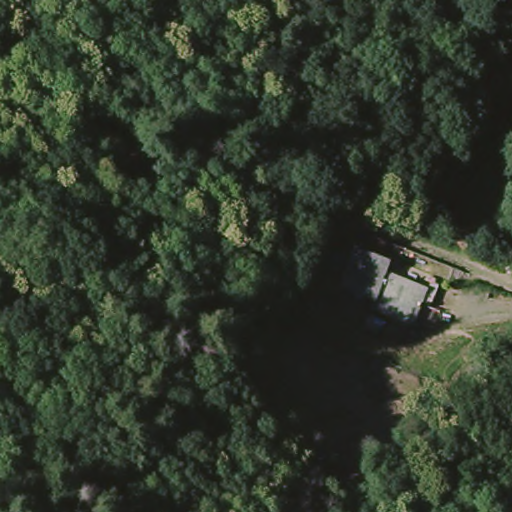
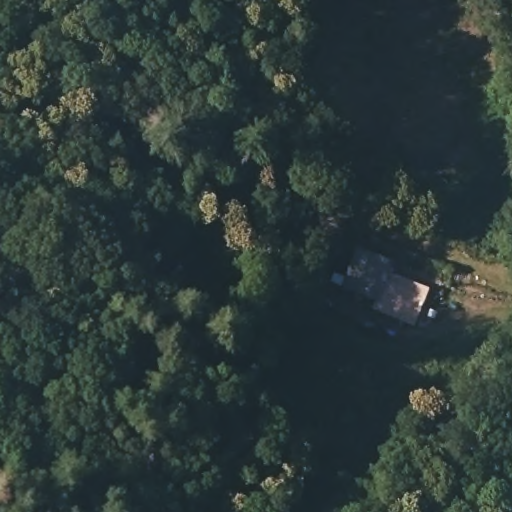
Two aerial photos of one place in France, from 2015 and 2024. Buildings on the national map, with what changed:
unchanged [(360,250),(393,264),(387,277),(433,296),(415,324),(372,309),(375,304),(343,289),(360,250)]

